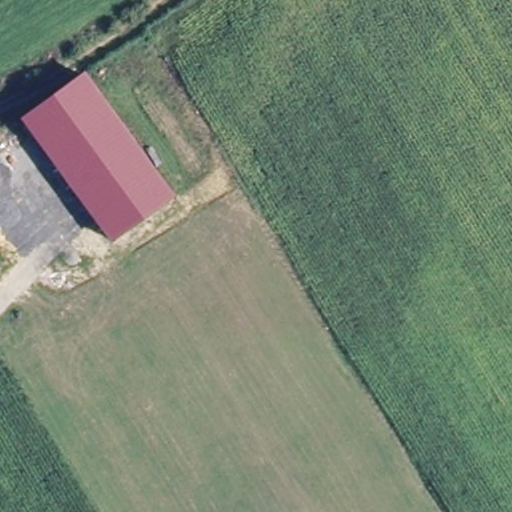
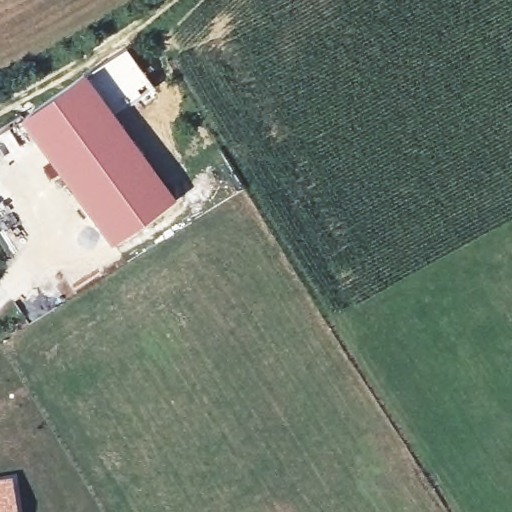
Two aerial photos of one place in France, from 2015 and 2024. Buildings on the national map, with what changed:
unchanged [(175,197),(110,244),(20,119),(84,72),(175,197)]
new [(17,512),(0,512),(0,476),(12,475),(17,512)]

